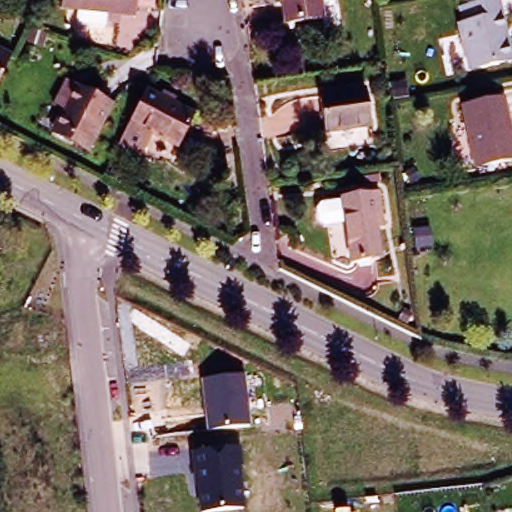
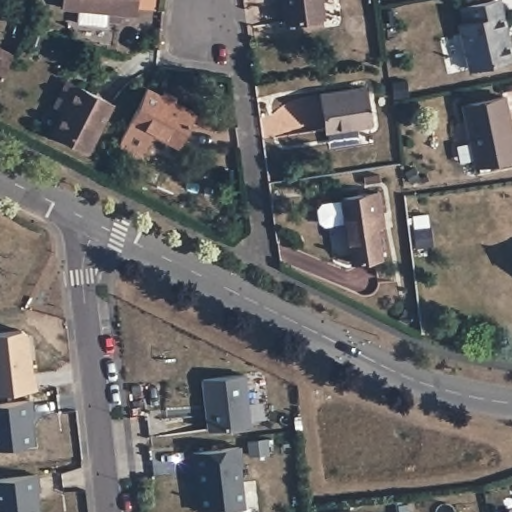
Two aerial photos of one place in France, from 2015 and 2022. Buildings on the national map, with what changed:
unchanged [(62,12),(63,0),(136,0),(134,20),(62,12)]
unchanged [(283,0),(320,0),(322,18),(286,23),(283,0)]
unchanged [(471,0),(500,0),(506,35),(510,54),(469,63),(456,3),(471,0)]
unchanged [(12,51),(0,75),(0,45),(12,51)]
unchanged [(69,109),(60,104),(70,83),(80,88),(115,105),(94,145),(91,151),(56,134),(60,128),(69,109)]
unchanged [(361,120),(322,126),(317,91),(357,86),(361,120)]
unchanged [(196,114),(180,145),(135,122),(150,90),(196,114)]
unchanged [(501,103),(512,152),(512,162),(475,169),(462,110),(501,103)]
unchanged [(345,217),(325,220),(320,217),(318,205),(322,200),(342,198),(342,195),(376,191),(378,209),(380,224),(374,225),(377,253),(350,257),(345,217)]
new [(20,332),(25,336),(30,375),(32,374),(35,391),(0,395),(0,334),(20,332)]
unchanged [(201,381),(245,376),(250,427),(206,432),(201,381)]
new [(29,402),(31,418),(28,418),(31,446),(0,450),(0,405),(29,402)]
unchanged [(192,453),(235,447),(244,506),(215,512),(200,512),(192,453)]
new [(35,477),(37,493),(35,494),(37,512),(0,512),(0,481),(35,477)]

